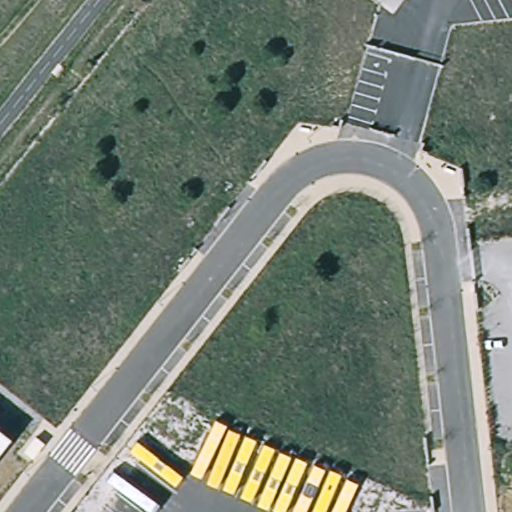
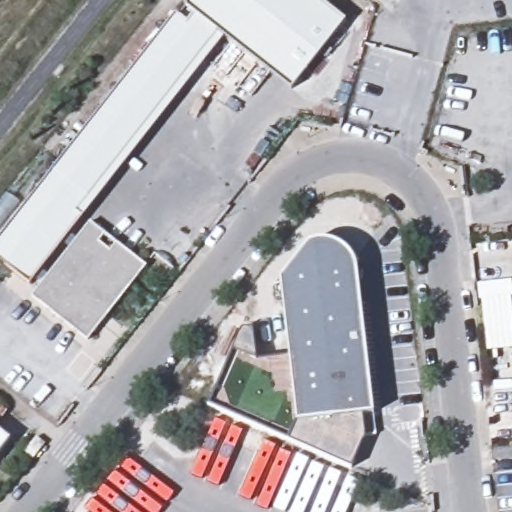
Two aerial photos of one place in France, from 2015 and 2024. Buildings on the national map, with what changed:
new [(188,0),(317,0),(343,21),(289,90),(222,37),(192,14),(183,7),(188,0)]
new [(29,285),(0,262),(0,234),(175,13),(185,22),(192,14),(222,37),(29,285)]
new [(89,222),(144,266),(87,341),(30,297),(89,222)]
new [(308,246),(317,241),(322,239),(333,239),(343,243),(347,246),(354,254),(356,258),(380,434),(368,435),(365,414),(300,423),(281,280),(308,246)]
new [(480,300),(510,297),(512,315),(512,348),(486,351),(480,300)]
new [(210,403),(242,330),(252,329),(256,361),(291,355),(300,423),(365,414),(368,435),(352,467),(210,403)]
unchanged [(10,439),(0,452),(0,432),(10,439)]

